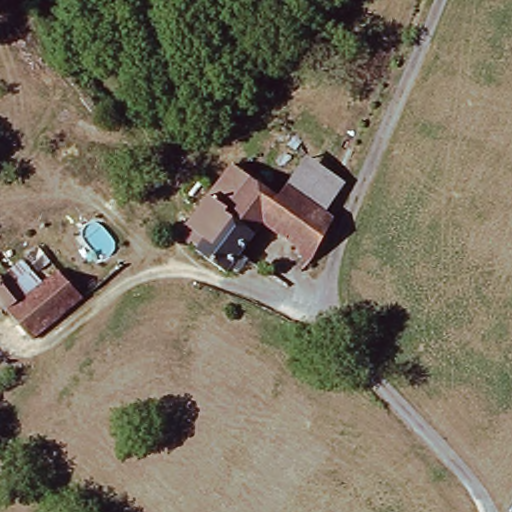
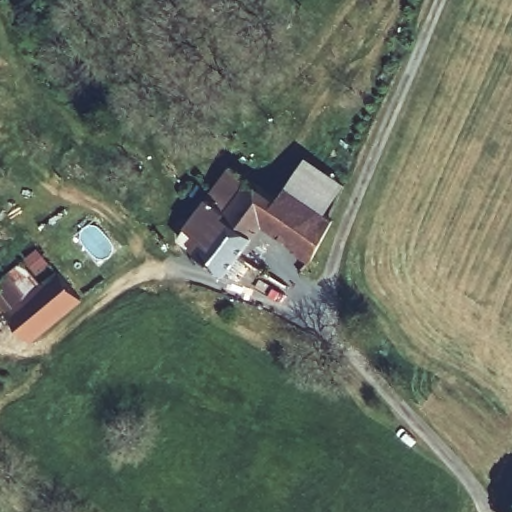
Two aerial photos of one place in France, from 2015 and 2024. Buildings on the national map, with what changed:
unchanged [(305,160),(344,186),(341,190),(324,216),(286,191),(305,160)]
unchanged [(182,244),(189,235),(183,229),(229,168),(276,204),(286,191),(324,216),(331,220),(308,263),(259,229),(223,277),(189,255),(192,250),(182,244)]
unchanged [(83,305),(33,345),(0,305),(0,282),(5,277),(14,288),(36,270),(48,284),(59,275),(83,305)]

